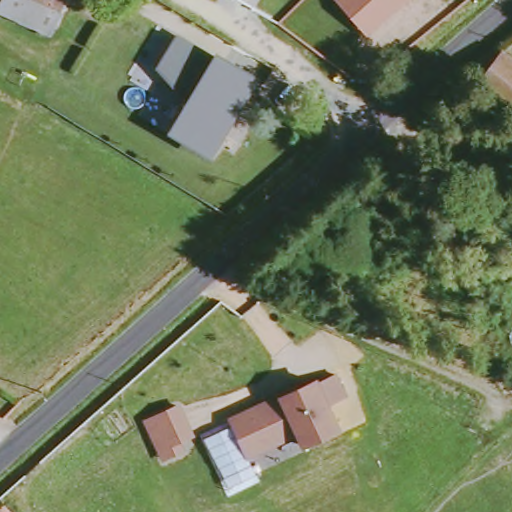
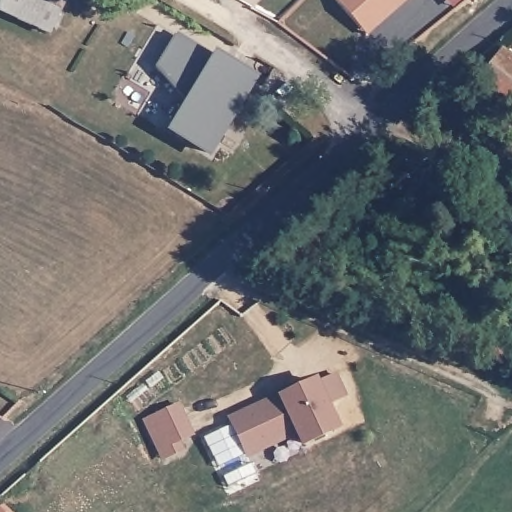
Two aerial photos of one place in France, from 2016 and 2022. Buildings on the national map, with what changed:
unchanged [(49,36),(0,14),(0,4),(2,0),(66,0),(49,36)]
unchanged [(93,3),(84,0),(94,0),(93,3)]
unchanged [(360,28),(335,0),(402,0),(390,10),(364,33),(360,28)]
unchanged [(217,54),(261,80),(212,160),(169,133),(187,105),(158,68),(178,37),(217,54)]
unchanged [(512,112),(476,83),(500,49),(512,58),(512,112)]
unchanged [(314,382),(337,374),(349,398),(330,406),(343,430),(304,449),(297,436),(250,460),(226,420),(277,399),(314,382)]
unchanged [(198,436),(186,444),(190,452),(164,464),(144,422),(182,405),(198,436)]
unchanged [(5,512),(1,512),(3,510),(5,512)]

